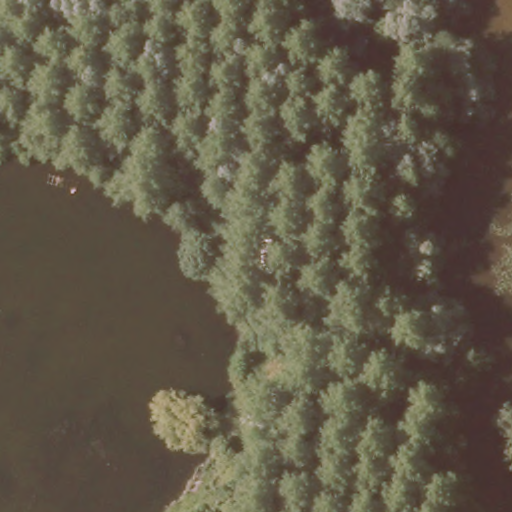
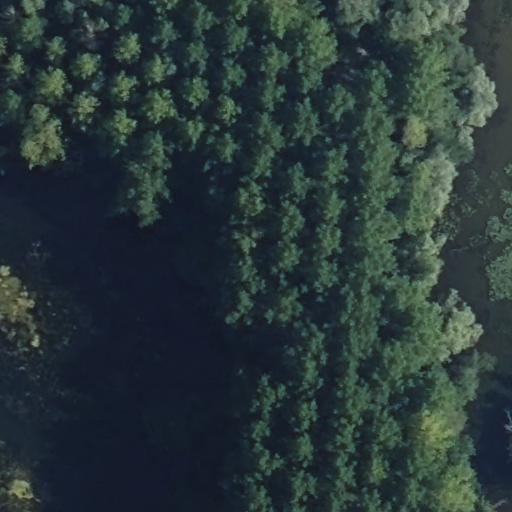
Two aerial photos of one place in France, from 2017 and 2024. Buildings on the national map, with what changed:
unchanged [(334,34),(350,34),(349,24),(376,27),(373,62),(334,60),(334,34)]

